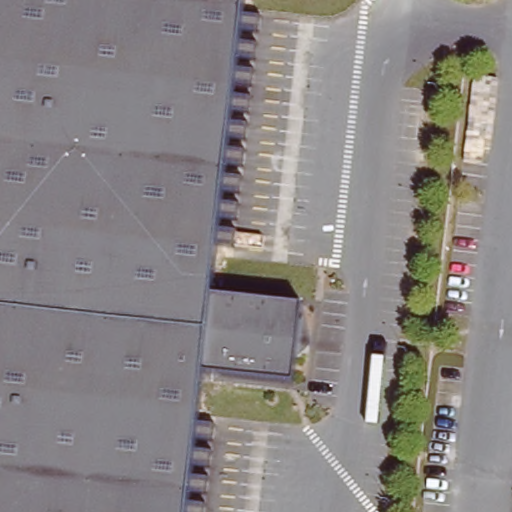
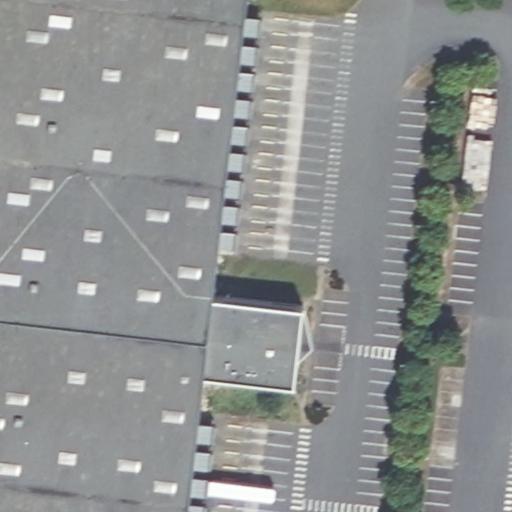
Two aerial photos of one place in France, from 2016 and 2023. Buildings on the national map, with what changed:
unchanged [(300,298),(290,378),(201,367),(182,512),(0,512),(0,0),(247,0),(210,287),(300,298)]

